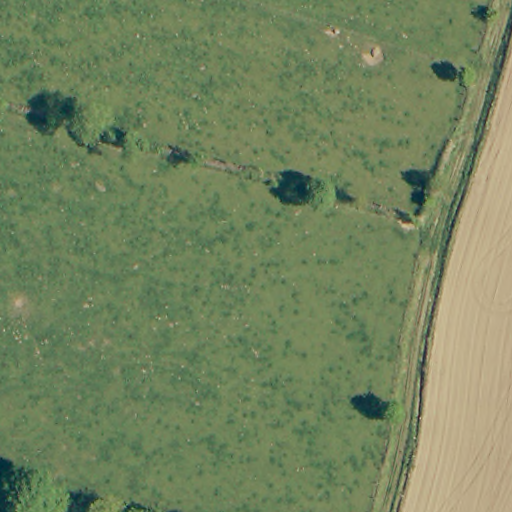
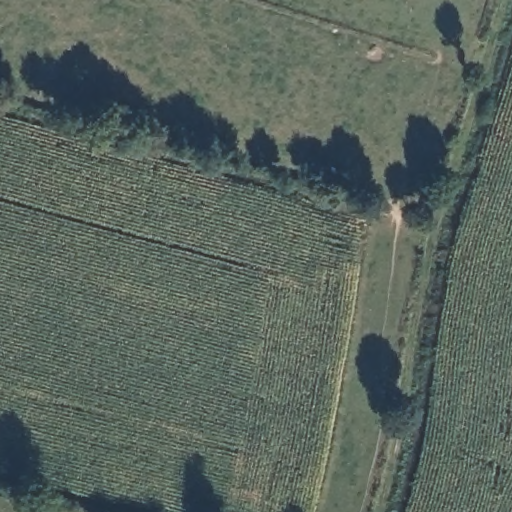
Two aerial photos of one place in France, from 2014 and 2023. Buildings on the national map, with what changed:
[]

